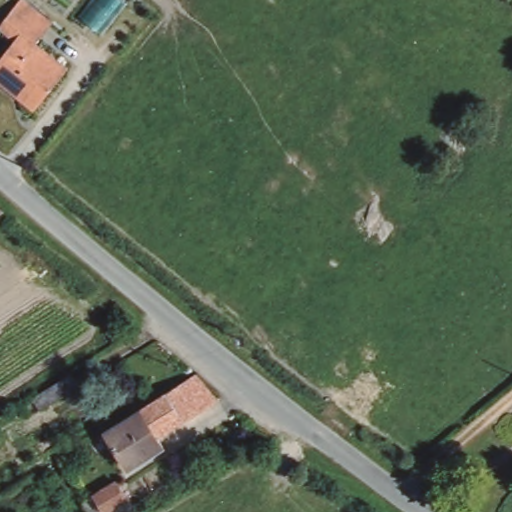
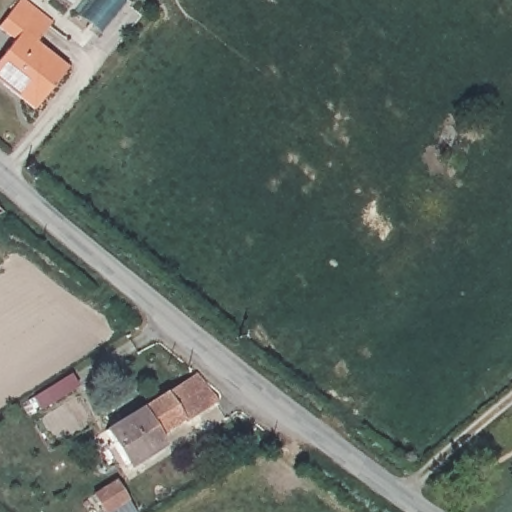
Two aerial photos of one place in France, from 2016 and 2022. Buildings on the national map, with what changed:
unchanged [(0,19),(14,0),(21,0),(48,21),(33,42),(64,66),(33,108),(0,84),(0,53),(10,40),(0,32),(0,19)]
unchanged [(219,402),(186,420),(184,416),(157,432),(165,445),(128,467),(107,431),(200,373),(219,402)]
unchanged [(84,390),(59,406),(48,390),(73,374),(84,390)]
unchanged [(113,486),(124,505),(111,512),(100,512),(92,498),(113,486)]

